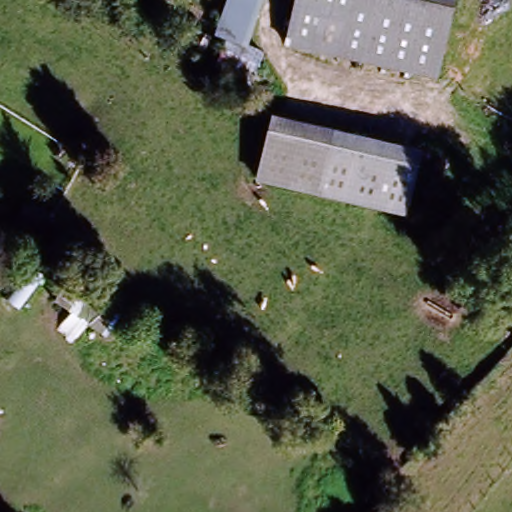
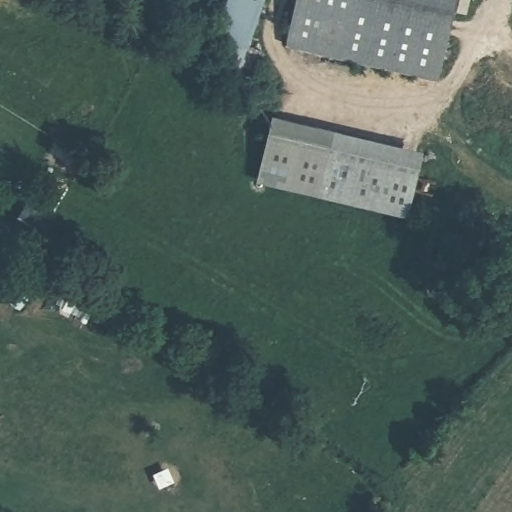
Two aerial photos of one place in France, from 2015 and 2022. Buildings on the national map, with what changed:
unchanged [(265,0),(250,43),(269,49),(258,82),(236,75),(246,45),(217,35),(229,0),(265,0)]
unchanged [(289,44),(299,0),(453,0),(436,77),(289,44)]
unchanged [(312,197),(255,184),(276,110),(330,124),(312,197)]
unchanged [(426,148),(409,220),(312,197),(330,124),(426,148)]

